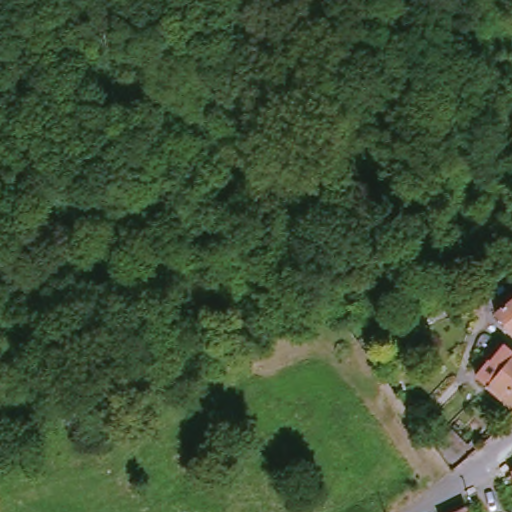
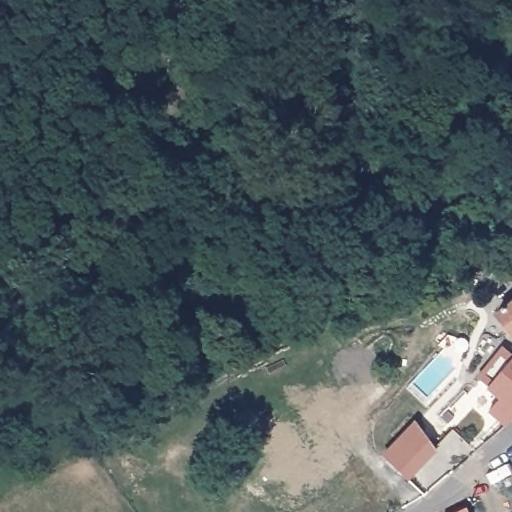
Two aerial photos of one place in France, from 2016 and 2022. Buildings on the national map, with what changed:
unchanged [(500,327),(512,316),(512,339),(500,327)]
unchanged [(480,381),(505,352),(512,357),(512,408),(480,381)]
new [(382,455),(414,421),(437,451),(410,480),(382,455)]

